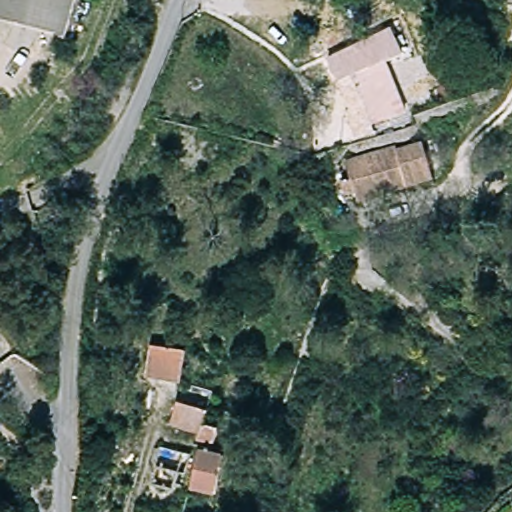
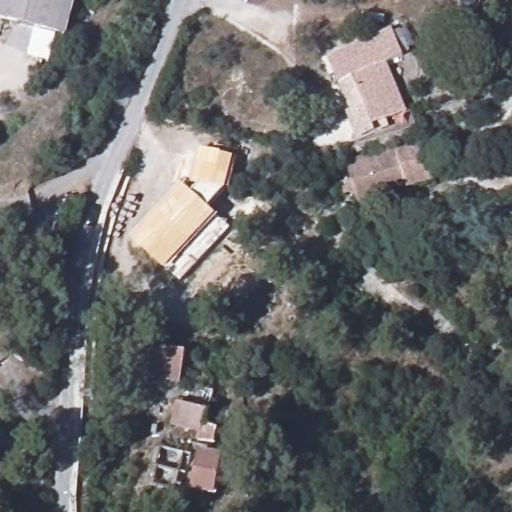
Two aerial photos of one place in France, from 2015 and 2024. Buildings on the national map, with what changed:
unchanged [(0,0),(70,0),(62,34),(0,18),(0,0)]
unchanged [(345,117),(350,116),(325,64),(390,30),(402,58),(385,65),(405,117),(370,129),(370,132),(372,136),(355,143),(353,139),(345,117)]
new [(164,270),(131,239),(183,184),(192,192),(199,185),(192,183),(200,148),(235,156),(226,190),(210,209),(216,214),(164,270)]
unchanged [(392,154),(394,159),(421,150),(432,189),(357,210),(353,201),(342,204),(340,192),(350,189),(343,169),(392,154)]
unchanged [(176,384),(145,380),(150,351),(181,355),(176,384)]
unchanged [(213,449),(197,444),(200,434),(175,427),(180,407),(205,414),(203,424),(219,431),(213,449)]
unchanged [(160,504),(137,496),(154,446),(175,453),(160,504)]
unchanged [(217,494),(197,492),(203,456),(223,459),(217,494)]

